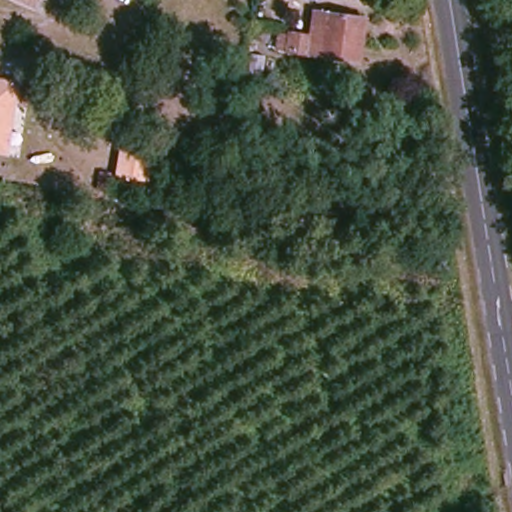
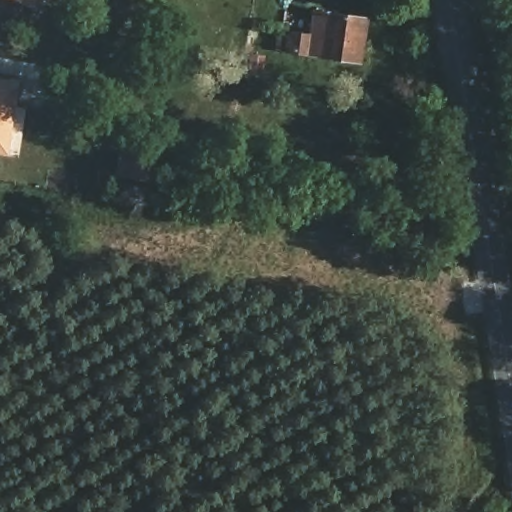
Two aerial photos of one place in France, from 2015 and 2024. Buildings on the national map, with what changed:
unchanged [(14,0),(32,0),(29,6),(14,0)]
unchanged [(363,62),(296,51),(299,35),(316,37),(322,13),(372,20),(363,62)]
unchanged [(5,151),(0,150),(0,79),(19,83),(5,151)]
unchanged [(119,146),(156,155),(151,182),(113,175),(119,146)]

